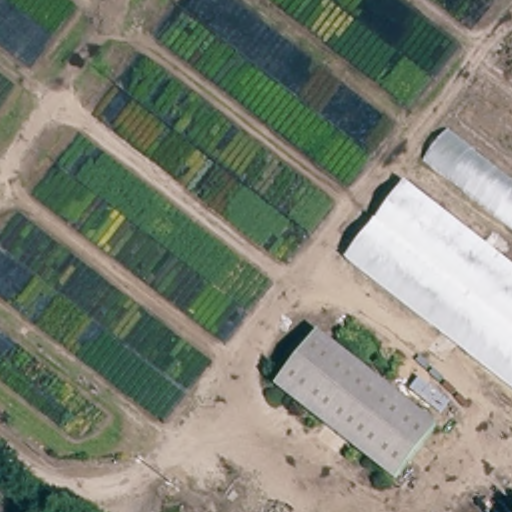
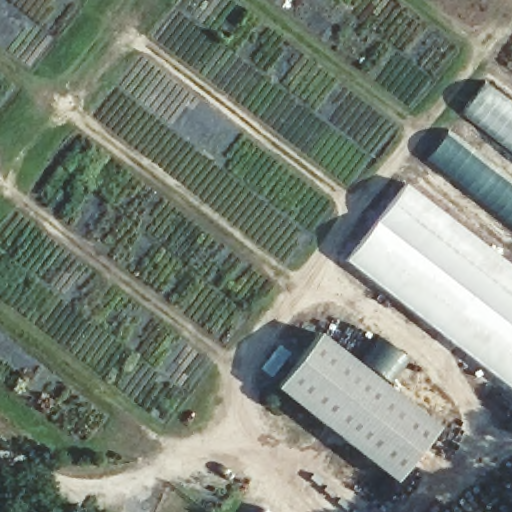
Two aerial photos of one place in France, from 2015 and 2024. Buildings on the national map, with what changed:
new [(460,111),(480,84),(512,108),(512,151),(460,111)]
unchanged [(451,134),(512,181),(512,231),(426,164),(451,134)]
unchanged [(512,266),(512,389),(353,261),(414,187),(512,266)]
unchanged [(326,330),(441,426),(398,478),(282,382),(326,330)]

